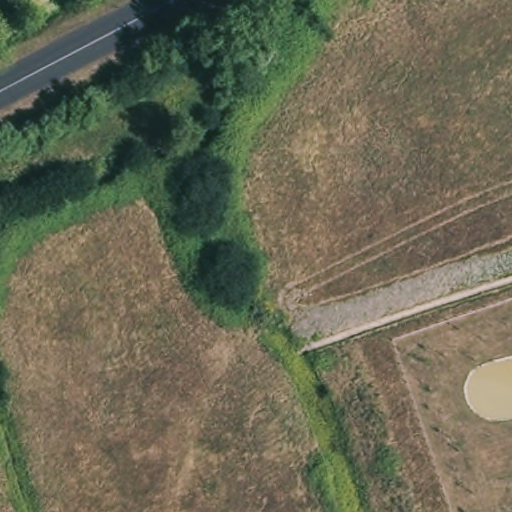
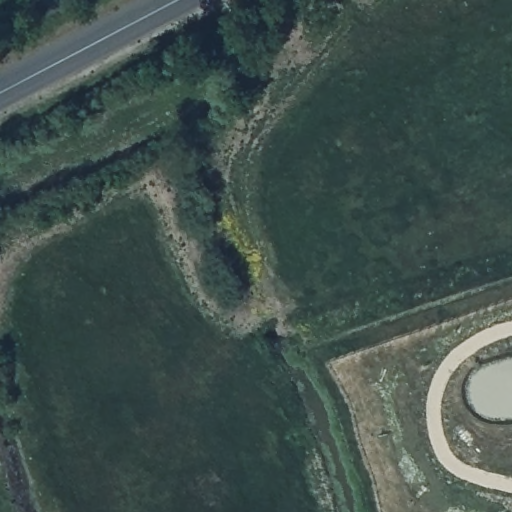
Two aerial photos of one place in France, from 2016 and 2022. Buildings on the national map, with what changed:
[]

